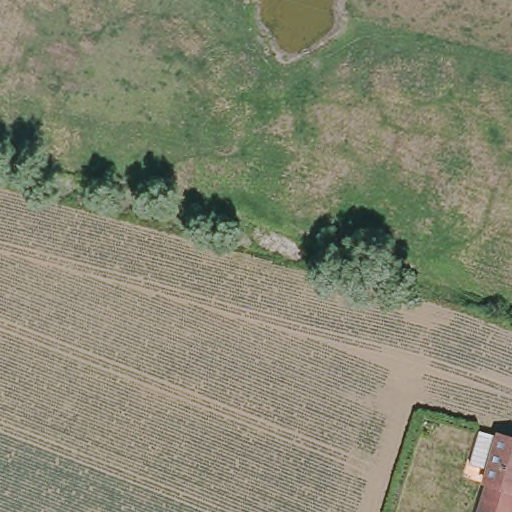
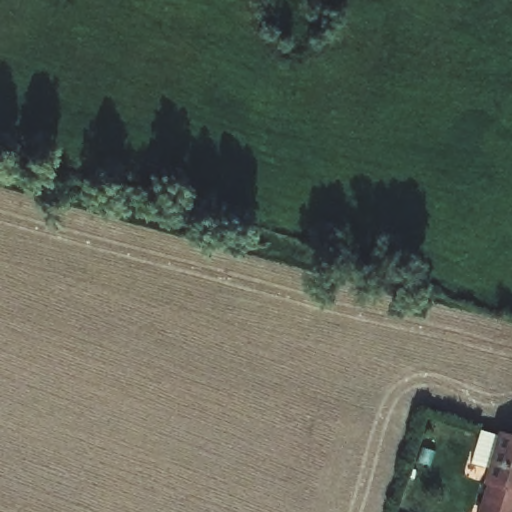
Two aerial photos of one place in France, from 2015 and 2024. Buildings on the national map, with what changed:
unchanged [(487,471),(473,467),(482,432),(498,437),(512,441),(512,512),(487,512),(494,487),(483,483),(487,471)]

